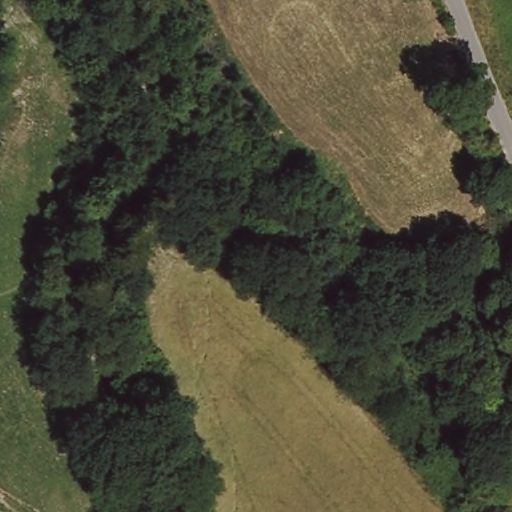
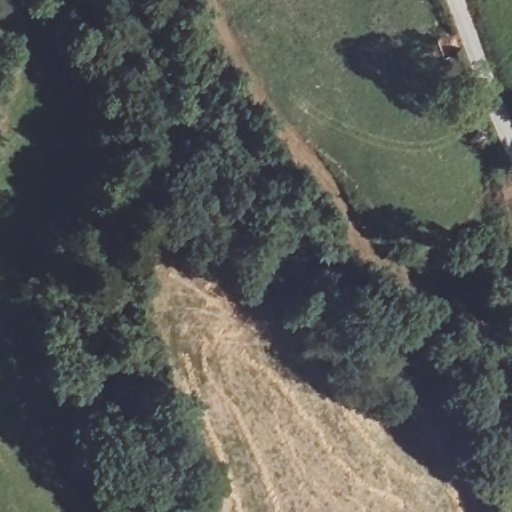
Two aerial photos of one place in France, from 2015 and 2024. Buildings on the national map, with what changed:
[]

